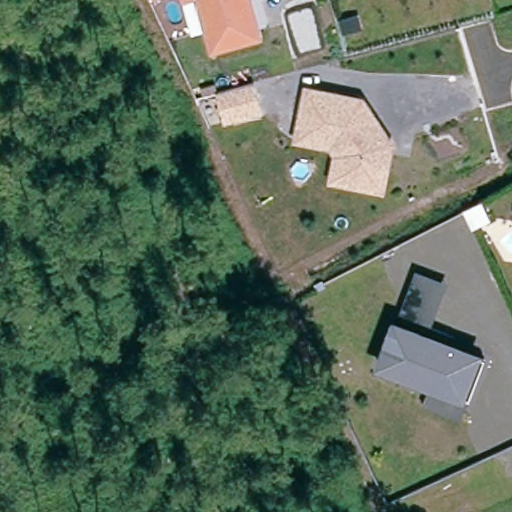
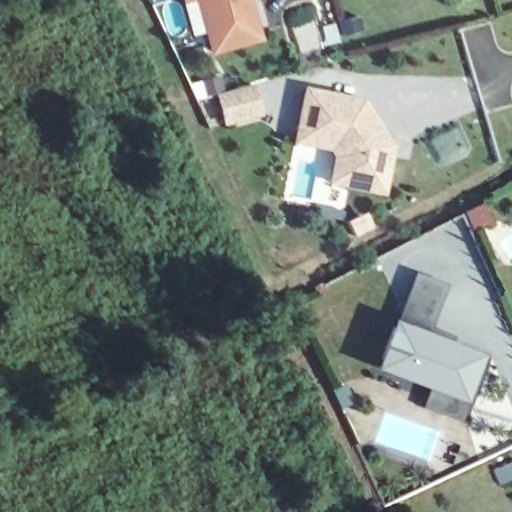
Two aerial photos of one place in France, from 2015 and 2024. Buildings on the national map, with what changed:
unchanged [(180,5),(179,0),(193,0),(180,5)]
unchanged [(195,0),(250,0),(263,42),(210,58),(195,0)]
unchanged [(215,95),(255,84),(263,116),(223,129),(215,95)]
unchanged [(305,87),(364,97),(394,144),(387,194),(329,186),(333,158),(327,151),(292,144),(305,87)]
unchanged [(484,207),(492,224),(473,233),(465,216),(484,207)]
unchanged [(394,325),(401,326),(409,306),(434,313),(428,327),(446,334),(443,340),(486,360),(470,402),(378,366),(394,325)]

